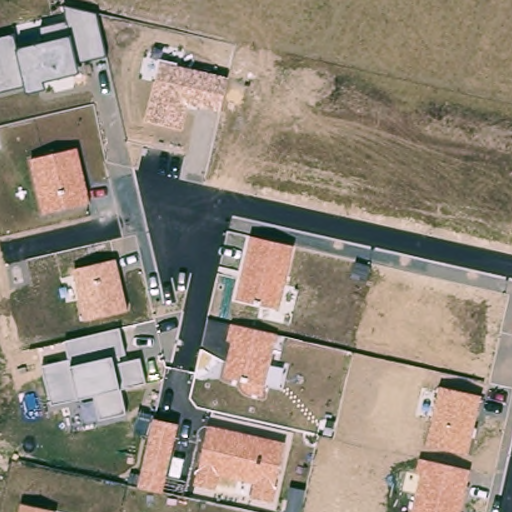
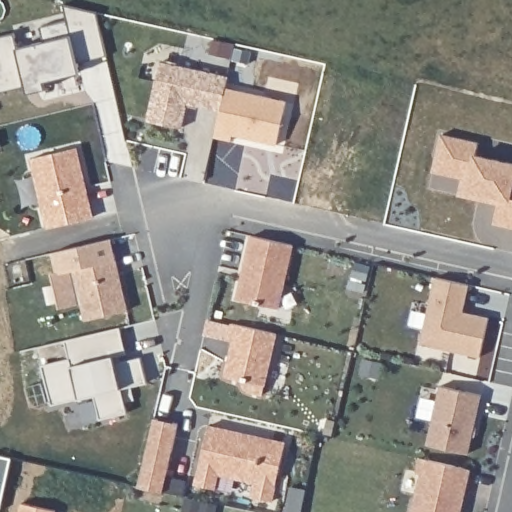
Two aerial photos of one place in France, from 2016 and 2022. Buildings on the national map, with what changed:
unchanged [(26,93),(24,88),(0,93),(0,38),(16,34),(20,49),(46,42),(41,28),(68,22),(64,6),(97,14),(106,56),(77,63),(80,74),(46,82),(47,88),(26,93)]
unchanged [(160,62),(229,77),(221,112),(187,105),(183,129),(148,121),(160,62)]
new [(226,89),(285,101),(277,143),(234,134),(233,142),(214,139),(221,112),(226,89)]
new [(497,205),(457,196),(460,180),(432,173),(440,134),(480,143),(478,154),(512,161),(512,228),(493,225),(497,205)]
unchanged [(33,159),(79,148),(90,202),(45,214),(33,159)]
unchanged [(251,236),(294,246),(280,309),(235,299),(251,236)]
unchanged [(73,268),(118,258),(129,310),(85,320),(73,268)]
new [(436,277),(470,284),(463,311),(490,317),(480,356),(421,343),(436,277)]
unchanged [(233,342),(228,340),(232,323),(278,334),(263,395),(247,393),(242,387),(244,380),(224,377),(233,342)]
unchanged [(94,396),(80,399),(52,406),(43,366),(70,359),(66,341),(120,328),(128,361),(141,357),(148,384),(123,390),(128,414),(100,420),(94,396)]
unchanged [(427,445),(441,387),(482,397),(467,455),(427,445)]
unchanged [(138,488),(150,436),(134,434),(139,411),(155,415),(155,418),(180,425),(165,494),(138,488)]
unchanged [(209,427),(286,444),(273,502),(252,498),(255,483),(219,476),(216,489),(195,484),(209,427)]
new [(11,458),(0,508),(0,456),(11,458)]
unchanged [(416,472),(419,459),(471,469),(461,512),(413,512),(422,473),(416,472)]
unchanged [(55,510),(54,512),(19,512),(21,504),(55,510)]

